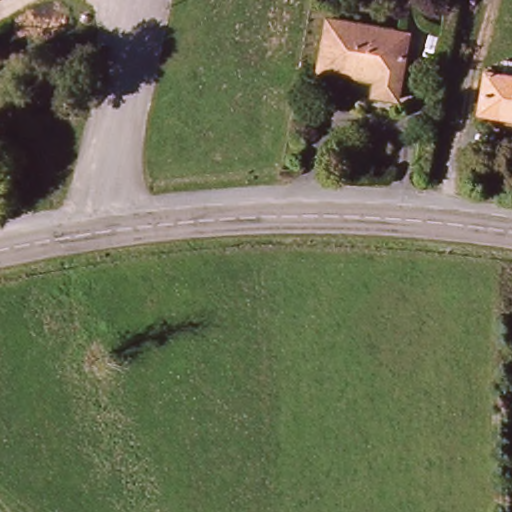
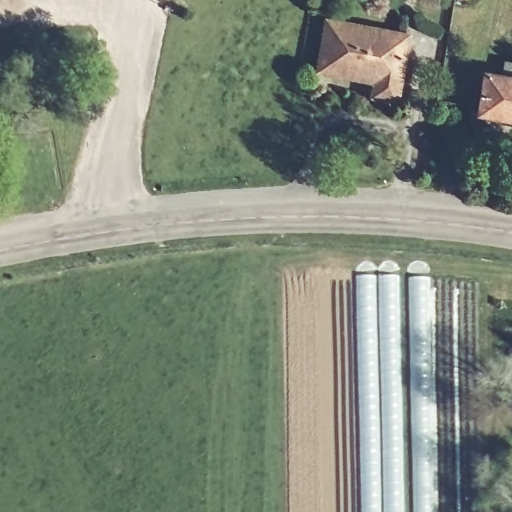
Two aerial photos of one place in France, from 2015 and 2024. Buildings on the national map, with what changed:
unchanged [(416,35),(408,98),(384,95),(385,81),(330,72),(338,22),(416,35)]
unchanged [(488,115),(493,72),(510,74),(512,65),(512,118),(488,115)]
new [(404,355),(408,355),(406,277),(431,277),(434,306),(437,418),(438,512),(360,512),(355,275),(401,273),(404,355)]

